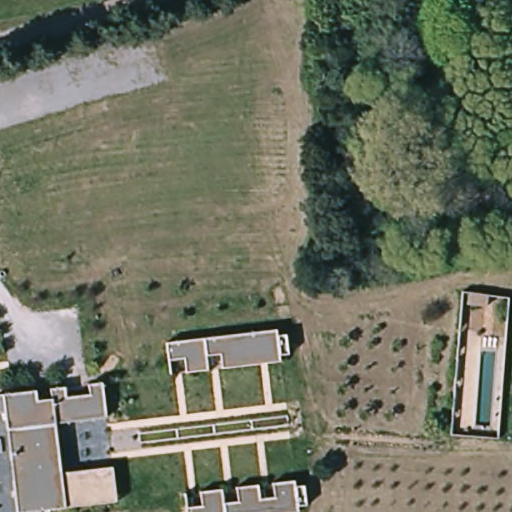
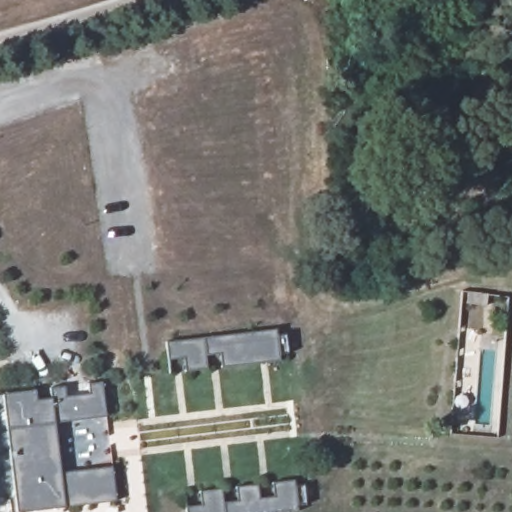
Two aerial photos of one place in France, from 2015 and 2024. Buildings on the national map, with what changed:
unchanged [(486,297),(485,308),(463,306),(464,295),(486,297)]
unchanged [(276,325),(277,331),(286,329),(289,351),(279,352),(280,358),(221,364),(220,351),(206,353),(208,367),(184,369),(182,356),(167,357),(165,339),(276,325)]
unchanged [(104,415),(53,422),(59,469),(110,463),(114,498),(13,511),(0,399),(0,391),(34,387),(35,397),(50,395),(48,385),(63,384),(65,393),(87,391),(85,381),(100,379),(104,415)]
unchanged [(185,506),(200,504),(199,490),(221,487),(222,501),(236,499),(235,486),(258,483),(259,497),(273,495),(271,481),(294,478),(295,484),(305,483),(308,504),(298,505),(298,511),(290,512),(186,512),(185,506)]

